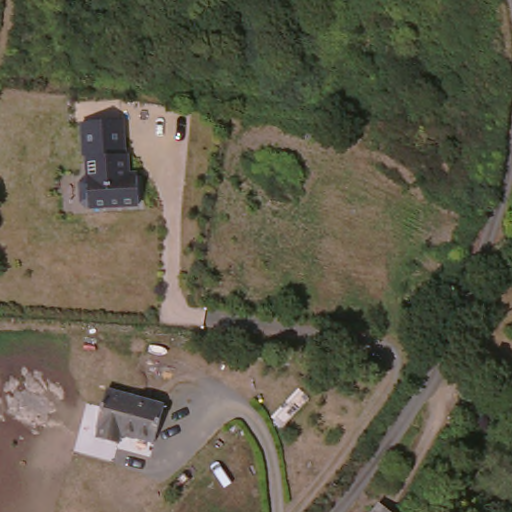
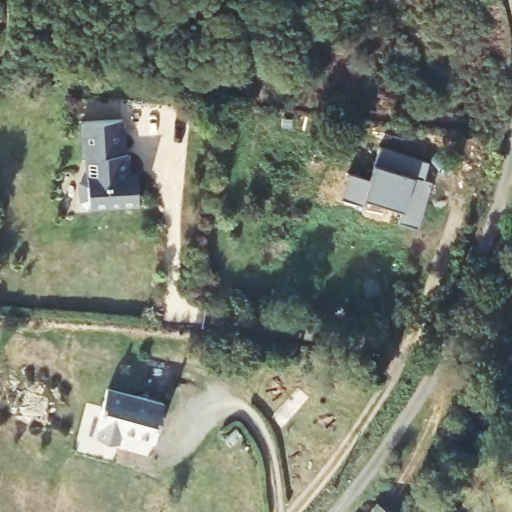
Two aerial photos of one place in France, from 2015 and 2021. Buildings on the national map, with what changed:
unchanged [(122,124),(127,178),(137,179),(138,207),(82,210),(79,180),(89,180),(88,159),(82,150),(82,125),(122,124)]
new [(349,172),(370,178),(380,145),(430,161),(425,178),(433,180),(419,227),(399,221),(403,209),(366,198),(364,204),(341,198),(349,172)]
unchanged [(149,453),(115,444),(113,453),(89,447),(101,399),(159,414),(149,453)]
unchanged [(374,510),(376,512),(373,512),(374,510)]

